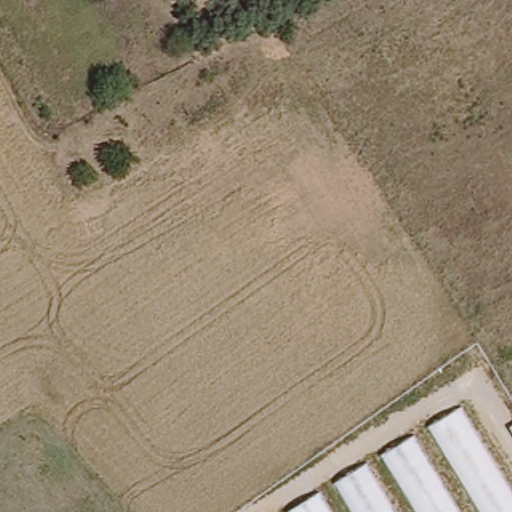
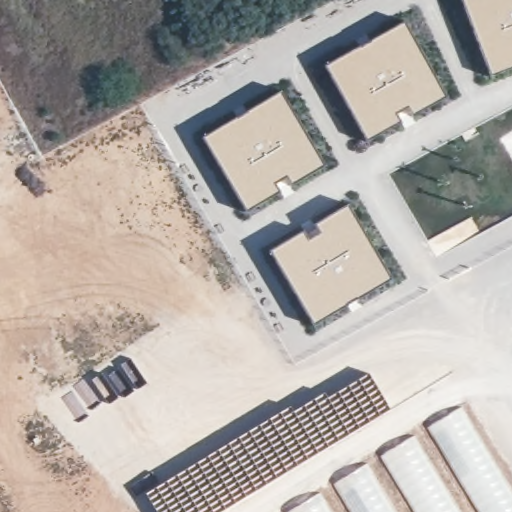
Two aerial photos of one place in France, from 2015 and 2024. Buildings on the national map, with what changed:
new [(463,0),(512,0),(512,66),(490,74),(463,0)]
new [(367,139),(325,63),(403,20),(447,96),(367,139)]
new [(245,210),(204,135),(280,90),(324,164),(245,210)]
new [(392,278),(313,322),(271,248),(346,203),(392,278)]
unchanged [(461,408),(512,493),(512,512),(480,512),(428,428),(461,408)]
unchanged [(414,436),(460,512),(416,512),(382,456),(414,436)]
unchanged [(367,465),(396,512),(352,512),(334,483),(367,465)]
unchanged [(318,493),(330,512),(287,512),(286,511),(318,493)]

